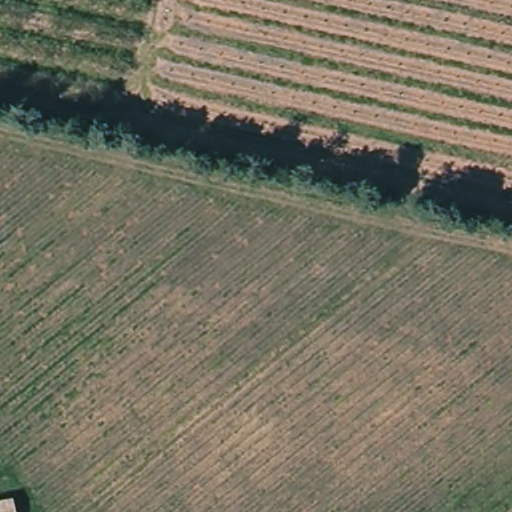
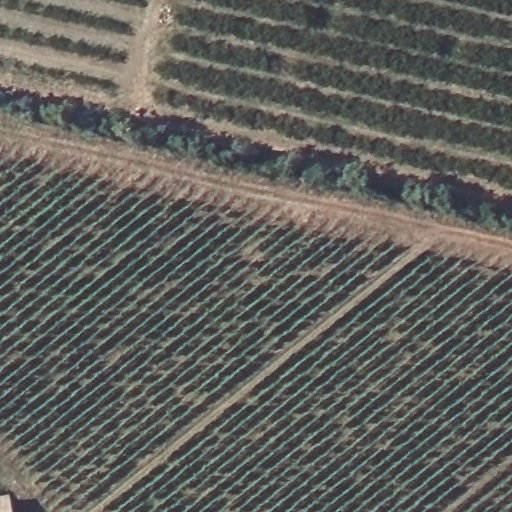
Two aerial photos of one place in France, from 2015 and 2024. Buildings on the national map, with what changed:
unchanged [(21,512),(0,512),(0,495),(15,492),(21,512)]

